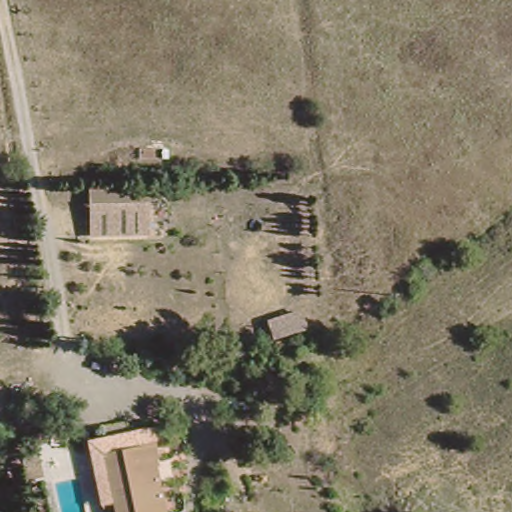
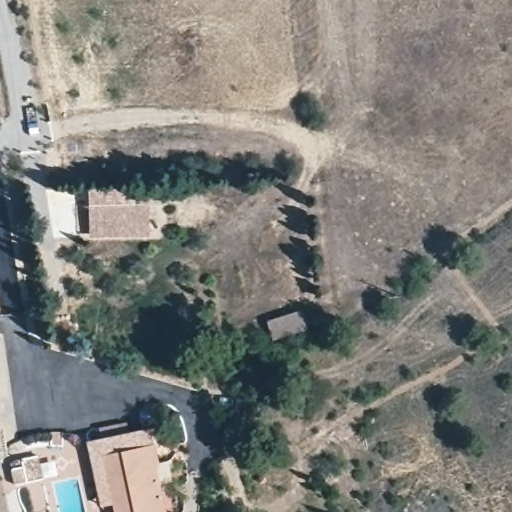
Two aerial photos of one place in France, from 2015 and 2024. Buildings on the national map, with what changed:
unchanged [(153,207),(93,210),(90,192),(152,190),(153,207)]
unchanged [(93,210),(153,207),(151,240),(93,239),(93,210)]
unchanged [(153,437),(161,473),(153,481),(159,512),(100,512),(91,446),(153,437)]

